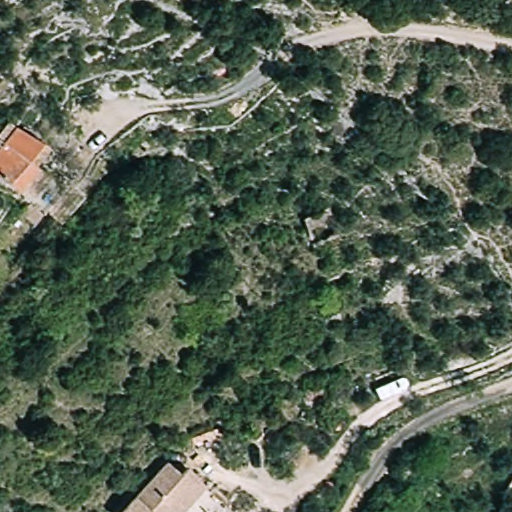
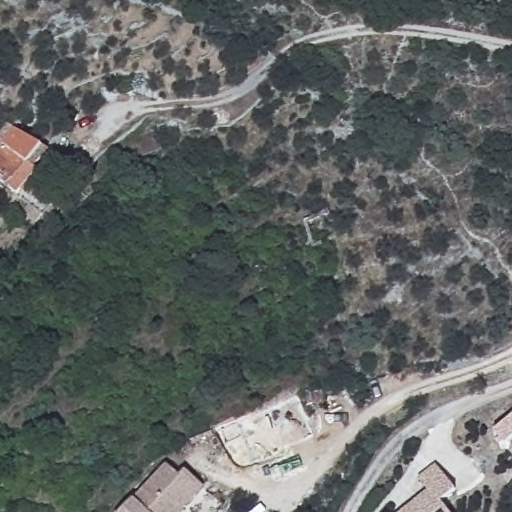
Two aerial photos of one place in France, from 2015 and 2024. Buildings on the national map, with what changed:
unchanged [(0,155),(13,126),(37,137),(29,154),(38,158),(27,189),(0,179),(0,155)]
unchanged [(91,176),(80,202),(67,199),(76,172),(91,176)]
unchanged [(319,399),(314,382),(330,378),(335,395),(319,399)]
unchanged [(194,467),(210,485),(181,512),(120,512),(174,462),(186,475),(194,467)]
new [(418,478),(434,465),(455,491),(442,501),(450,512),(399,512),(427,490),(418,478)]

